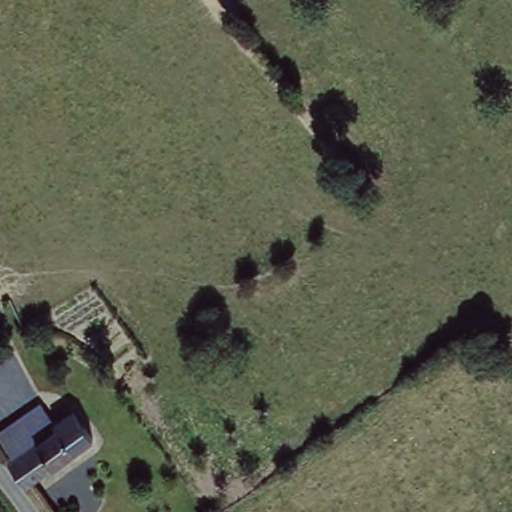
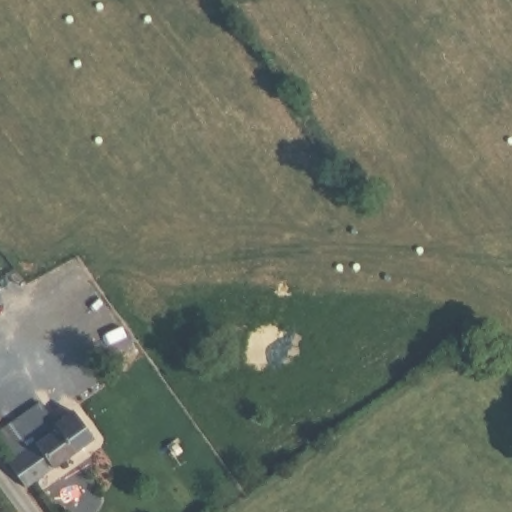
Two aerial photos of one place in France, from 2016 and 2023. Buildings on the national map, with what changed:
unchanged [(54,420),(74,405),(96,436),(26,486),(0,451),(0,427),(39,398),(54,420)]

